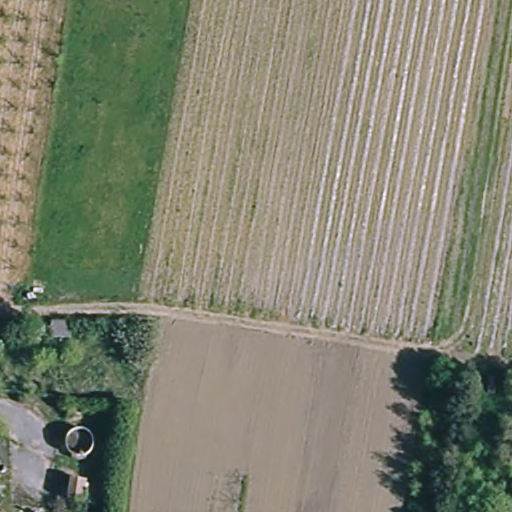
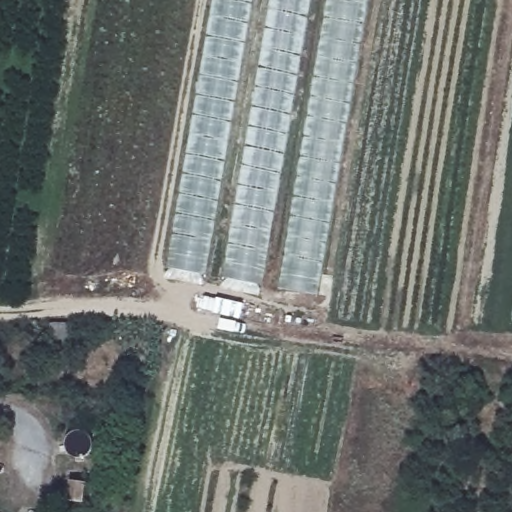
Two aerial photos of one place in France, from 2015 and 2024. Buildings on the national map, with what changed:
new [(212,0),(369,0),(316,297),(166,270),(212,0)]
unchanged [(65,338),(48,339),(46,322),(65,322),(65,338)]

